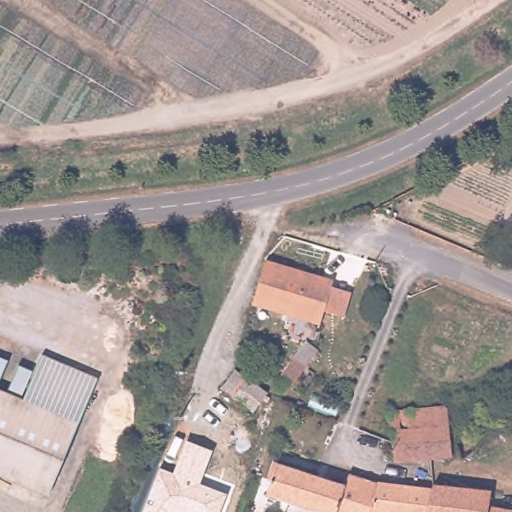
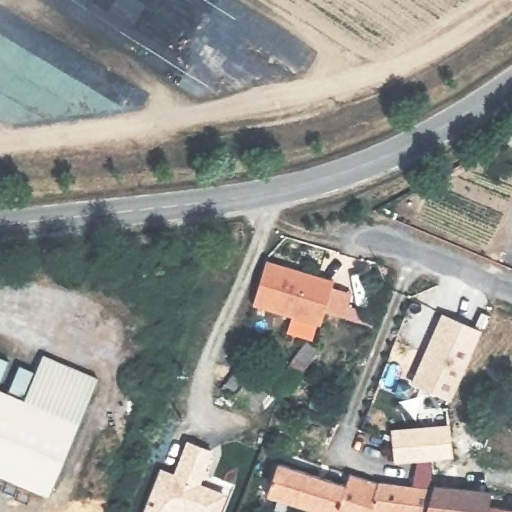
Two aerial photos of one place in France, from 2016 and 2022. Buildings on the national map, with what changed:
unchanged [(330,281),(317,326),(249,306),(263,262),(330,281)]
unchanged [(352,294),(344,320),(321,312),(328,287),(352,294)]
new [(450,401),(411,383),(442,313),(481,330),(450,401)]
unchanged [(277,379),(309,341),(317,353),(292,389),(277,379)]
unchanged [(0,477),(0,357),(14,363),(1,392),(27,403),(84,428),(53,500),(0,477)]
unchanged [(27,403),(46,357),(103,381),(84,428),(27,403)]
unchanged [(270,393),(256,412),(225,389),(239,369),(270,393)]
unchanged [(386,430),(445,424),(448,458),(429,460),(391,462),(387,440),(386,430)]
unchanged [(220,512),(143,512),(159,469),(173,474),(185,441),(213,452),(200,485),(227,495),(220,512)]
unchanged [(267,492),(278,460),(374,490),(379,479),(434,486),(426,512),(329,512),(267,492)]
unchanged [(434,482),(436,481),(491,489),(489,500),(488,512),(426,512),(434,486),(434,482)]
unchanged [(489,500),(512,505),(512,512),(488,512),(489,500)]

